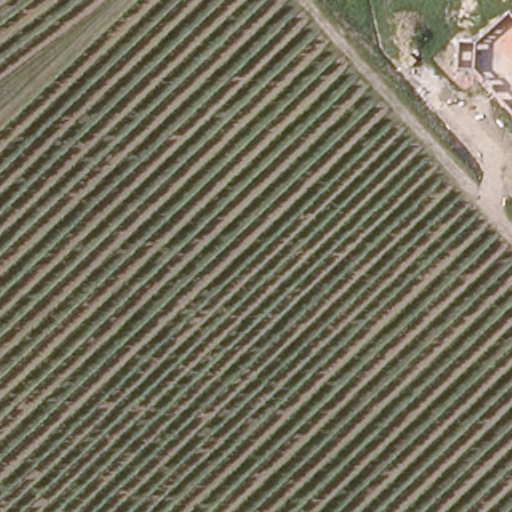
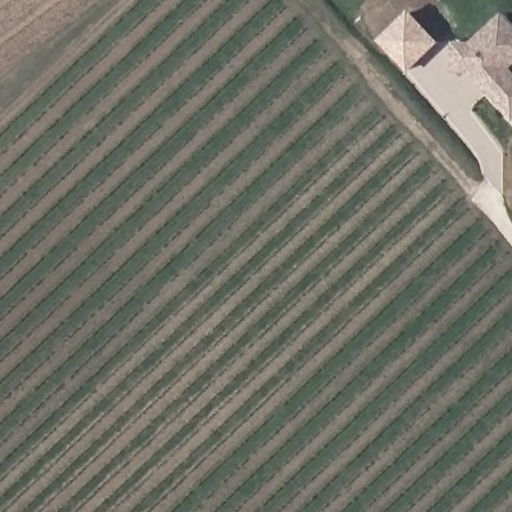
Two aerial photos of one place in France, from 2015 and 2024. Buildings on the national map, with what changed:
new [(409,71),(381,39),(414,10),(442,41),(409,71)]
unchanged [(511,68),(512,69),(512,118),(472,71),(455,71),(457,43),(473,44),(507,15),(512,21),(512,67),(511,68)]

